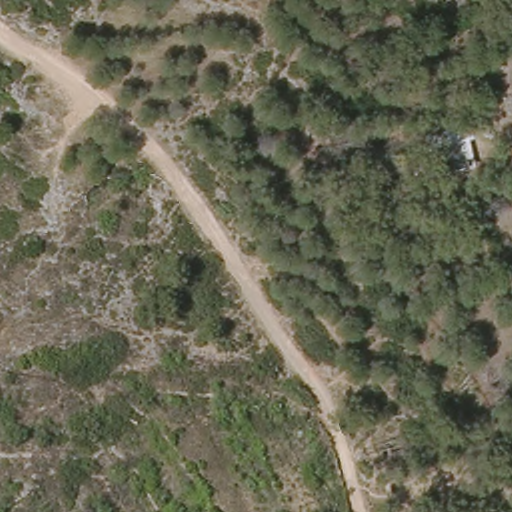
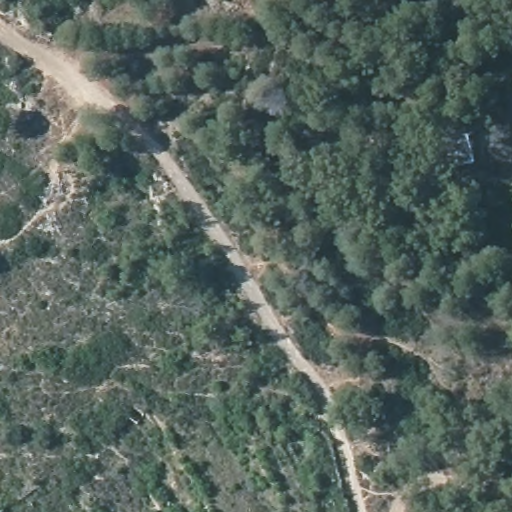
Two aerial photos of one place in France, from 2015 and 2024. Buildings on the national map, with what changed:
unchanged [(425,143),(418,121),(482,111),(485,135),(425,143)]

